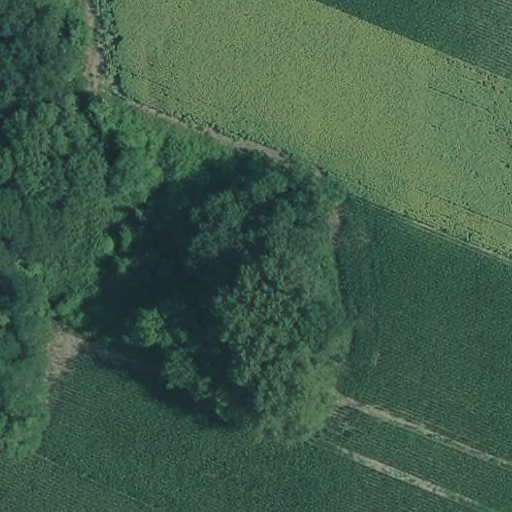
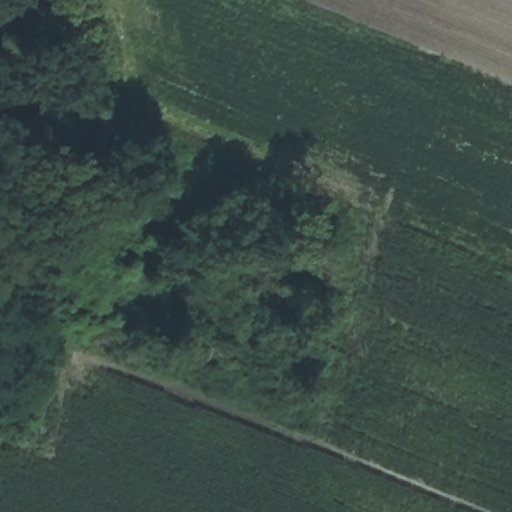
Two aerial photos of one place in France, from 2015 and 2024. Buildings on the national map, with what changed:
[]

